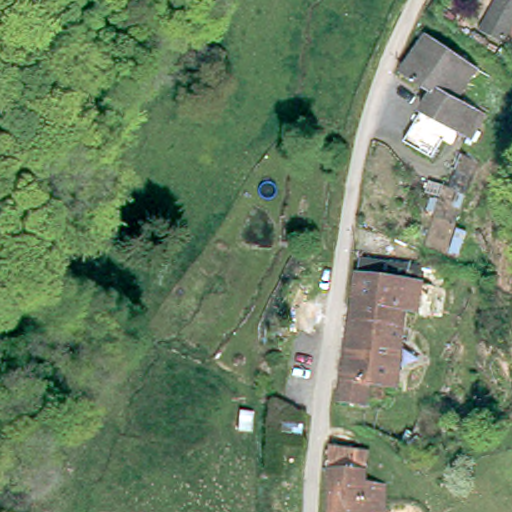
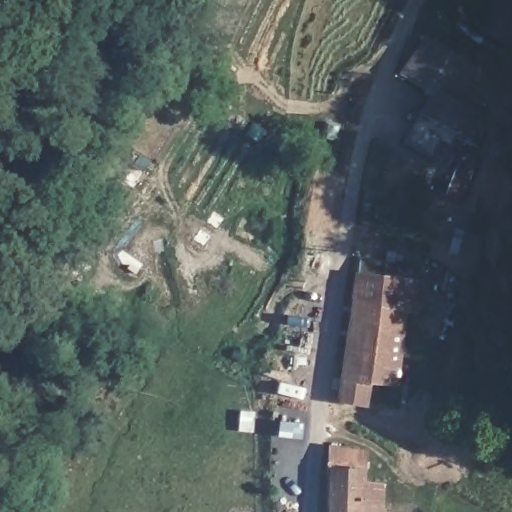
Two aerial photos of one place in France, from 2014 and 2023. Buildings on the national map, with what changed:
unchanged [(481,32),(497,0),(501,0),(512,6),(512,47),(481,32)]
unchanged [(469,85),(475,89),(465,102),(485,116),(465,143),(450,133),(430,163),(402,144),(437,95),(410,76),(436,39),(481,69),(469,85)]
unchanged [(204,74),(211,55),(238,65),(231,84),(204,74)]
unchanged [(460,156),(475,163),(461,194),(446,186),(460,156)]
unchanged [(360,283),(362,267),(429,276),(427,291),(360,283)]
unchanged [(355,308),(360,283),(427,291),(423,318),(402,315),(355,308)]
unchanged [(355,308),(402,315),(397,342),(351,336),(355,308)]
unchanged [(365,402),(363,410),(340,407),(351,336),(397,342),(389,392),(374,390),(372,403),(365,402)]
unchanged [(301,428),(279,428),(279,412),(303,412),(301,428)]
unchanged [(330,512),(331,451),(362,452),(361,483),(381,484),(381,512),(330,512)]

